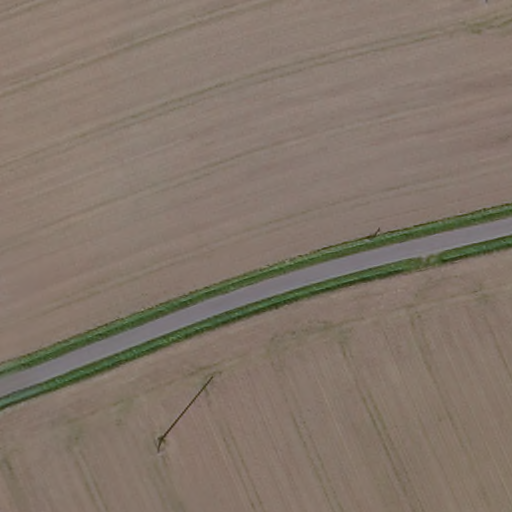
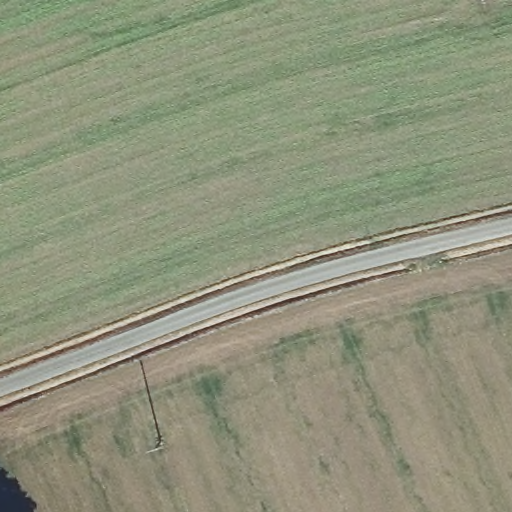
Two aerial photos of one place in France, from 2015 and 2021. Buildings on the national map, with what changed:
[]

